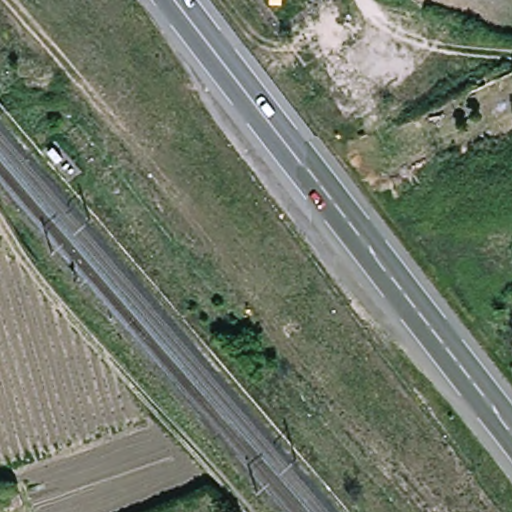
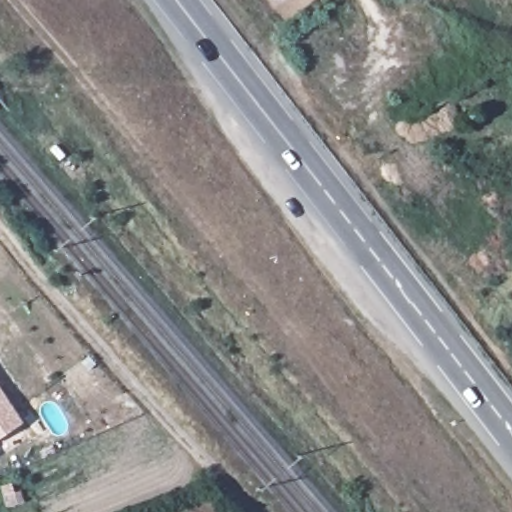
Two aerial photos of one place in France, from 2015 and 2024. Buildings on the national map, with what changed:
new [(0,437),(0,396),(20,423),(0,437)]

